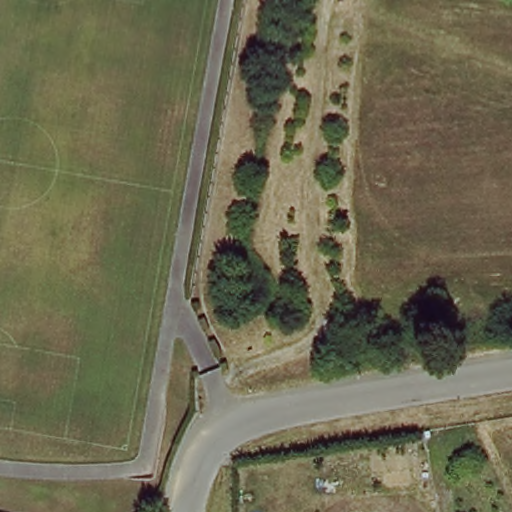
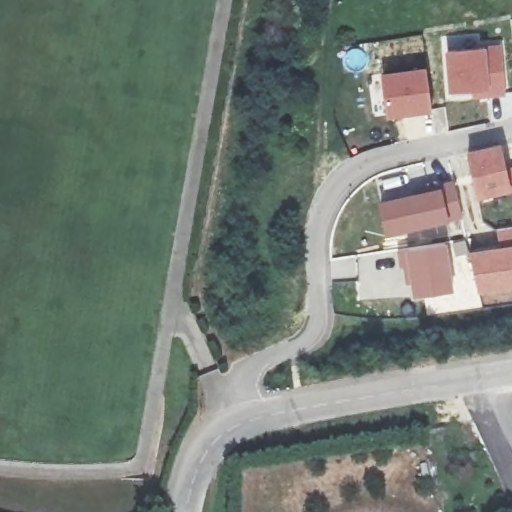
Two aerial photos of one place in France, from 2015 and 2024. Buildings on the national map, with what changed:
new [(445,89),(441,50),(493,45),(497,92),(481,94),(480,86),(445,89)]
new [(422,69),(428,109),(384,115),(378,75),(422,69)]
new [(512,169),(512,188),(473,196),(464,152),(496,145),(502,171),(512,169)]
new [(442,186),(455,183),(462,217),(450,220),(388,236),(381,201),(442,186)]
new [(498,230),(512,228),(512,287),(479,292),(471,251),(500,247),(498,230)]
new [(407,249),(446,243),(452,292),(415,298),(412,282),(406,282),(399,248),(407,249)]

